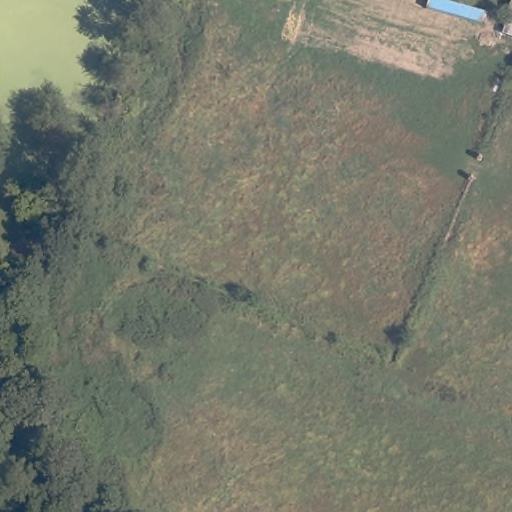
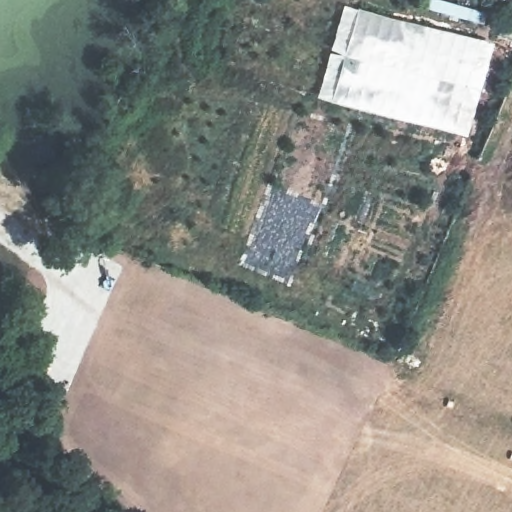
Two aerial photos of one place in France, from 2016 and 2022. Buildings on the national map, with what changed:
new [(359,6),(479,41),(452,133),(332,99),(359,6)]

